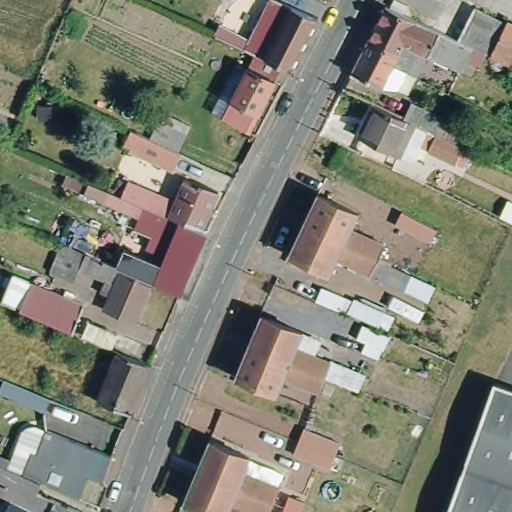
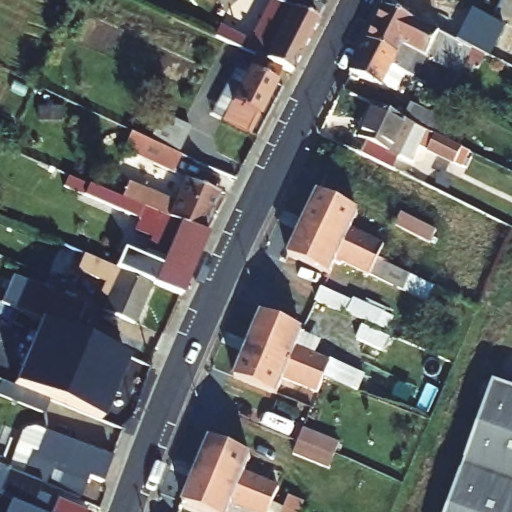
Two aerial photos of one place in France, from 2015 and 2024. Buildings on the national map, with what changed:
unchanged [(284,73),(274,69),(256,61),(247,56),(217,43),(215,42),(209,39),(214,28),(244,43),(265,1),(310,22),(284,73)]
unchanged [(394,6),(442,30),(429,55),(420,51),(409,72),(395,65),(400,53),(370,38),(387,3),(394,6)]
unchanged [(492,55),(490,54),(473,46),(459,38),(474,8),(495,18),(507,25),(492,55)]
unchanged [(512,27),(512,65),(492,55),(507,25),(512,27)]
unchanged [(459,38),(473,46),(490,54),(477,80),(429,55),(442,30),(459,38)]
unchanged [(370,38),(400,53),(395,65),(409,72),(401,88),(385,87),(352,72),(370,38)]
unchanged [(256,61),(274,69),(251,119),(242,137),(213,124),(214,123),(202,117),(226,68),(238,73),(247,56),(256,61)]
unchanged [(427,135),(422,132),(407,164),(392,156),(386,168),(370,160),(355,152),(360,142),(351,138),(366,106),(397,120),(402,107),(426,119),(439,125),(434,137),(462,151),(456,166),(421,150),(427,135)]
unchanged [(170,153),(146,141),(159,114),(181,124),(186,126),(174,154),(170,153)]
unchanged [(142,161),(149,146),(177,159),(170,174),(142,161)]
demolished [(350,200),(326,188),(334,173),(357,185),(350,200)]
unchanged [(155,250),(161,238),(157,236),(144,230),(149,218),(129,209),(87,190),(91,182),(113,191),(124,196),(132,179),(177,200),(189,176),(220,189),(204,227),(177,216),(177,219),(209,233),(193,267),(165,253),(155,250)]
unchanged [(318,193),(359,213),(352,229),(383,244),(377,259),(302,224),(318,193)]
unchanged [(428,302),(337,257),(330,274),(289,254),(302,224),(377,259),(435,286),(428,302)]
unchanged [(117,264),(122,266),(122,269),(152,282),(136,320),(105,307),(111,293),(101,288),(105,278),(80,267),(75,278),(62,273),(51,268),(62,241),(74,245),(105,259),(117,264)]
unchanged [(117,264),(125,246),(190,274),(182,292),(122,266),(117,264)]
unchanged [(95,307),(82,336),(30,314),(12,305),(24,277),(42,285),(84,303),(95,307)]
unchanged [(260,314),(303,332),(297,347),(332,362),(326,377),(247,344),(260,314)]
new [(102,421),(13,384),(40,318),(82,336),(127,358),(102,421)]
unchanged [(279,390),(277,394),(234,376),(247,344),(326,377),(324,382),(335,387),(332,395),(329,394),(319,389),(312,404),(279,390)]
demolished [(151,369),(131,418),(97,404),(106,382),(95,376),(97,362),(102,348),(151,369)]
unchanged [(42,417),(0,400),(0,382),(47,403),(42,417)]
unchanged [(512,390),(512,512),(448,512),(481,420),(492,388),(494,384),(497,385),(512,390)]
demolished [(292,436),(267,426),(272,414),(297,424),(292,436)]
demolished [(215,431),(220,417),(245,428),(240,441),(215,431)]
unchanged [(44,463),(29,457),(39,432),(107,460),(99,478),(86,472),(72,500),(36,484),(44,463)]
unchanged [(208,444),(251,461),(245,476),(280,490),(274,504),(197,473),(208,444)]
unchanged [(12,509),(5,506),(7,503),(0,500),(0,469),(36,484),(31,496),(68,512),(12,512),(11,512),(12,509)]
unchanged [(251,512),(233,505),(230,512),(201,512),(184,505),(197,473),(274,504),(270,512),(251,512)]
unchanged [(291,497),(306,503),(302,512),(284,512),(286,508),(291,497)]
unchanged [(8,512),(4,512),(5,511),(8,512)]

